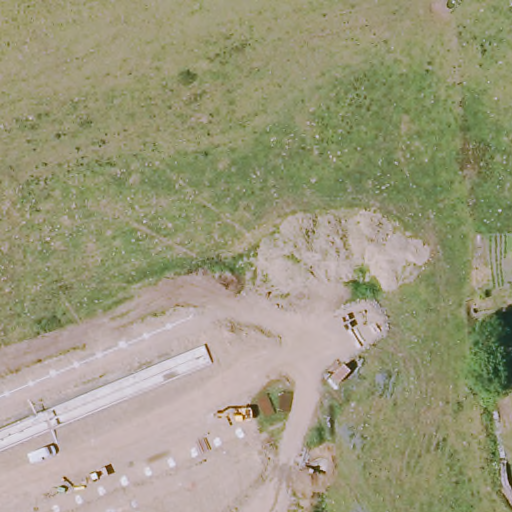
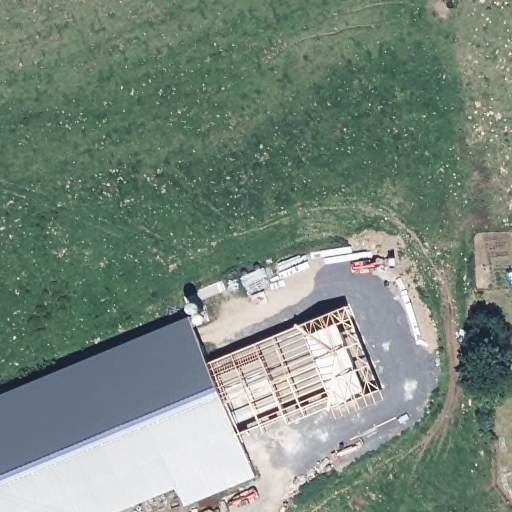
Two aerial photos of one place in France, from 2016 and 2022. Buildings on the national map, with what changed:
new [(193,313),(258,474),(187,501),(180,483),(111,512),(0,512),(0,393),(193,313)]

